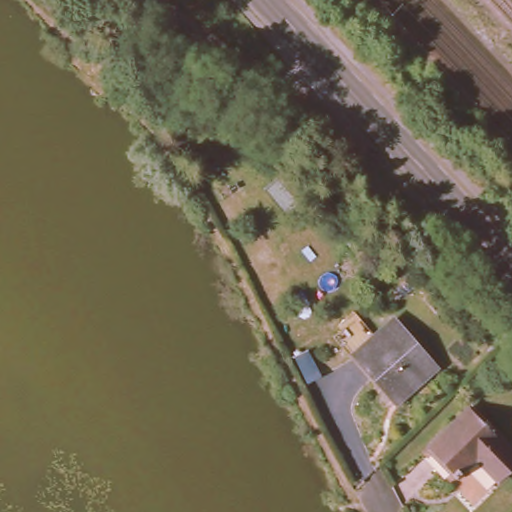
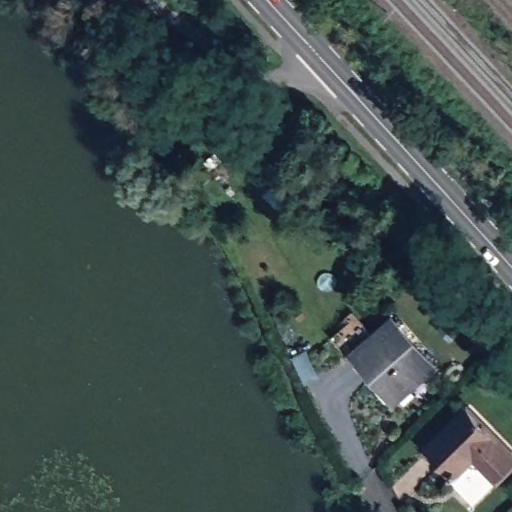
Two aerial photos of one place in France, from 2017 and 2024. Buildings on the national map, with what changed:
unchanged [(438,363),(401,395),(358,345),(394,313),(438,363)]
unchanged [(512,453),(512,464),(496,479),(474,457),(456,475),(427,446),(467,407),(512,453)]

